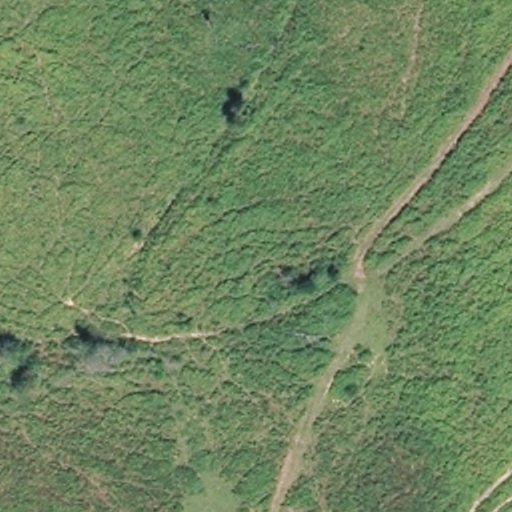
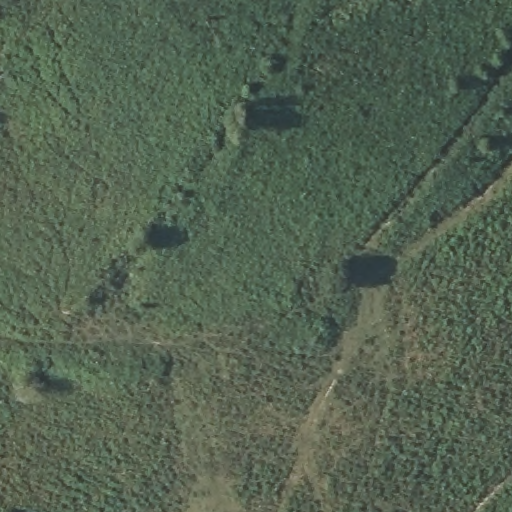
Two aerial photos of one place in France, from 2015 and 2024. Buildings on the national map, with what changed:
[]

